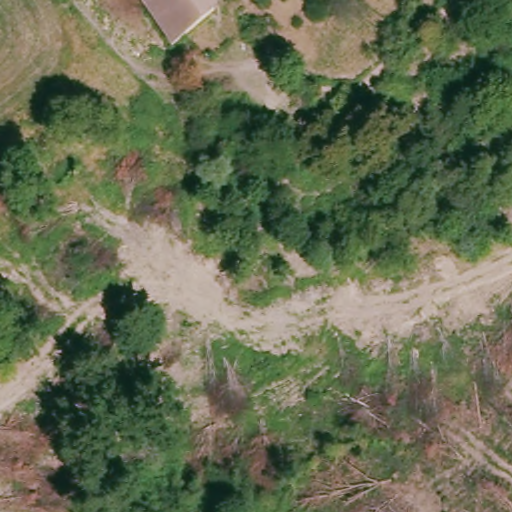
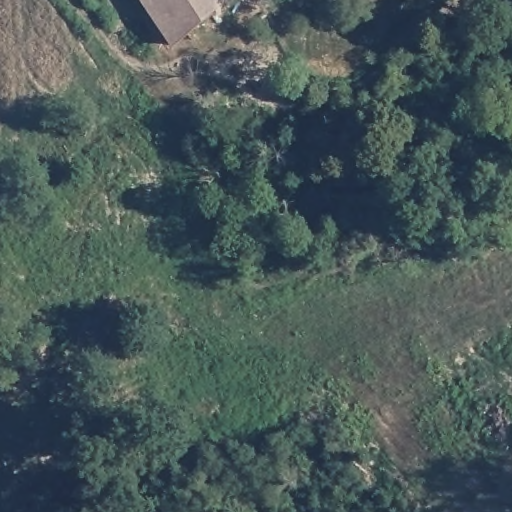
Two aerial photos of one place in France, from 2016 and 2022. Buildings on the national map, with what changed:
unchanged [(139,0),(208,0),(215,10),(167,41),(139,0)]

